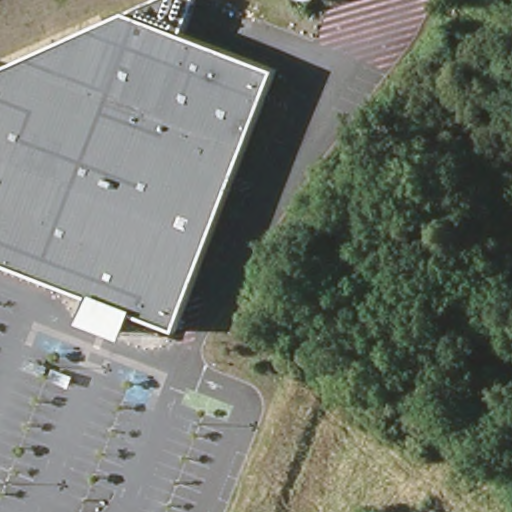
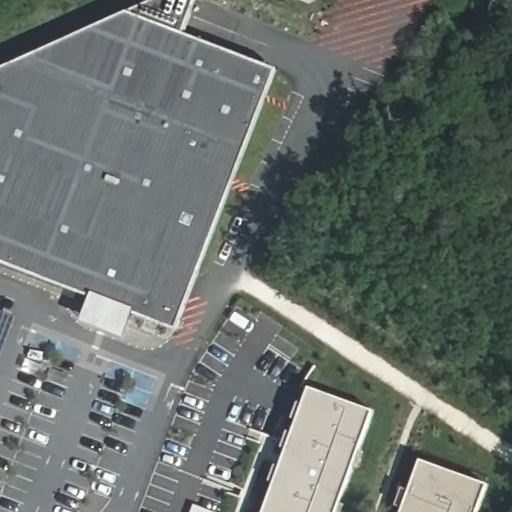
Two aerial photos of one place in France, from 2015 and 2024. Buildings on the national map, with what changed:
unchanged [(157,0),(197,0),(182,36),(276,72),(174,333),(126,315),(118,335),(85,322),(93,302),(0,265),(0,69),(157,0)]
new [(18,318),(0,366),(0,311),(18,318)]
new [(373,412),(338,512),(264,512),(307,391),(373,412)]
new [(486,487),(478,512),(402,512),(420,463),(486,487)]

